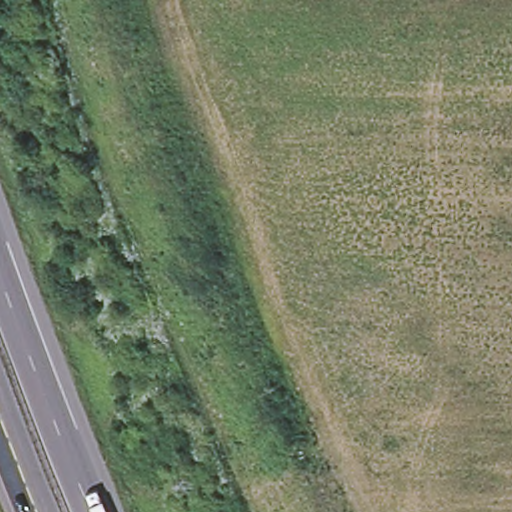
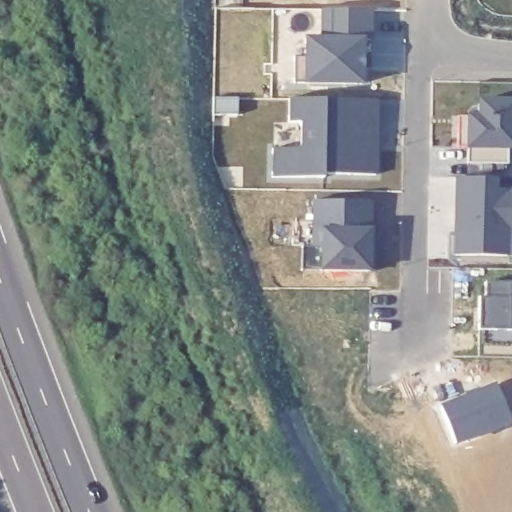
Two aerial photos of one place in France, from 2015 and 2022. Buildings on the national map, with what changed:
new [(374,11),(374,37),(369,37),(369,83),(306,81),(305,34),(319,36),(323,9),(374,11)]
new [(382,102),(381,175),(273,173),(274,146),(302,148),(306,121),(290,121),(291,99),(382,102)]
new [(458,145),(458,115),(468,116),(479,116),(479,100),(512,100),(512,148),(508,148),(507,164),(468,163),(467,145),(458,145)]
new [(455,176),(508,178),(508,188),(512,188),(512,228),(510,228),(509,255),(454,254),(455,176)]
new [(301,272),(301,244),(309,244),(310,200),(372,202),(373,230),(371,273),(319,273),(301,272)]
new [(479,298),(487,298),(487,282),(510,282),(510,292),(512,292),(512,356),(479,355),(479,329),(479,298)]
new [(512,420),(512,424),(458,445),(442,405),(497,383),(512,420)]

